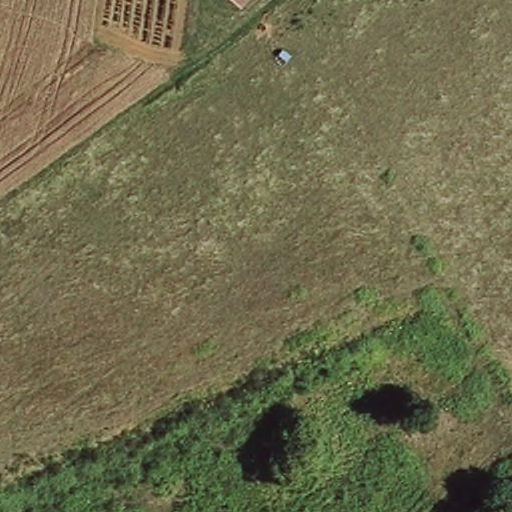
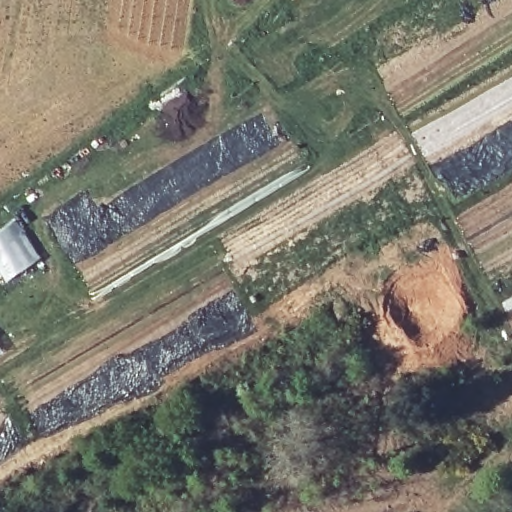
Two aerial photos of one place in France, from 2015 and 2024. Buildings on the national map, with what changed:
unchanged [(236,0),(244,0),(241,4),(236,0)]
new [(40,259),(5,282),(0,276),(0,227),(15,217),(40,259)]

